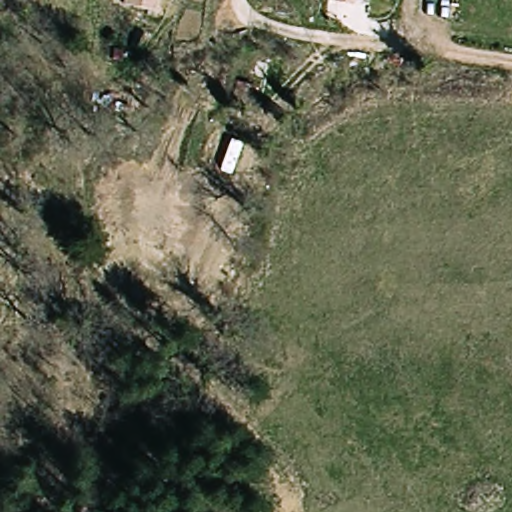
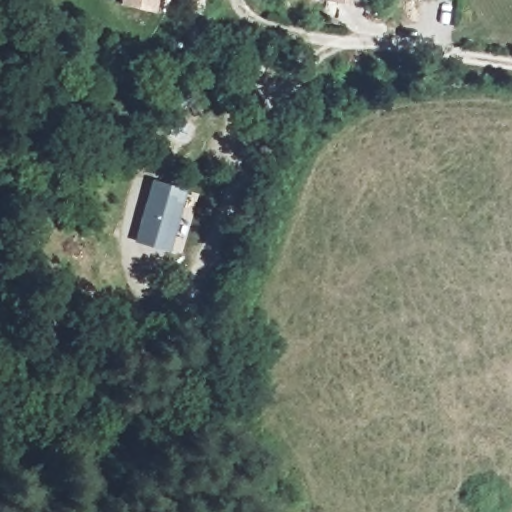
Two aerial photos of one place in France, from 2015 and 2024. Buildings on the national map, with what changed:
unchanged [(155,13),(122,7),(123,0),(158,0),(155,13)]
unchanged [(326,0),(343,0),(342,5),(325,2),(326,0)]
new [(170,252),(135,242),(153,179),(187,188),(170,252)]

